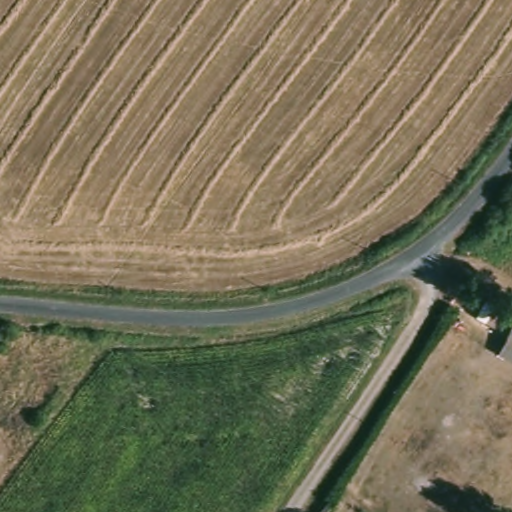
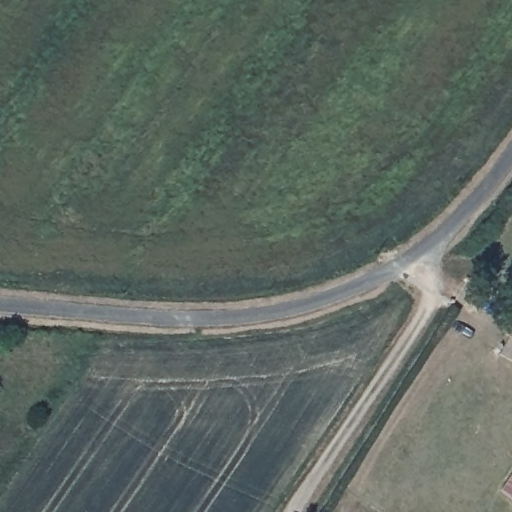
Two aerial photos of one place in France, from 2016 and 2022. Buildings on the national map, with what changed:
unchanged [(512,358),(502,353),(512,338),(512,358)]

